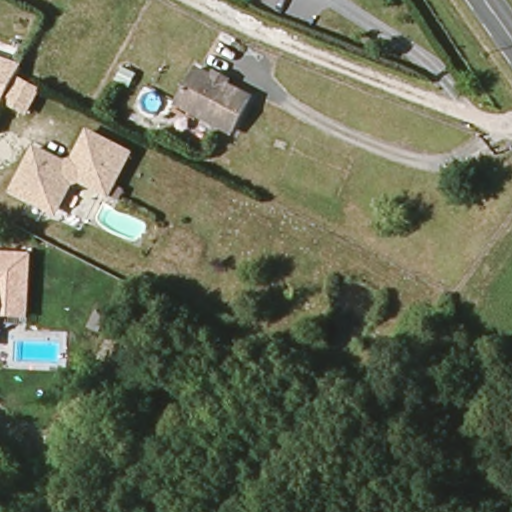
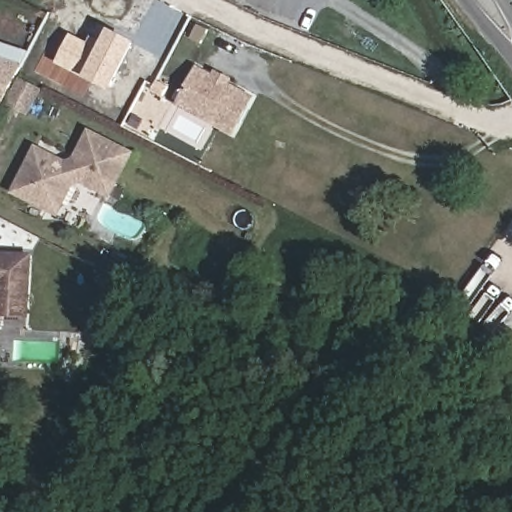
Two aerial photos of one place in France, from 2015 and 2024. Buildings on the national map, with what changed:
new [(88,42),(92,35),(102,40),(109,27),(138,42),(111,91),(85,77),(57,64),(71,33),(88,42)]
unchanged [(18,76),(42,88),(29,117),(6,105),(3,109),(0,108),(0,57),(22,63),(18,76)]
unchanged [(231,132),(177,105),(192,75),(195,69),(249,96),(247,101),(231,132)]
unchanged [(126,153),(105,195),(77,180),(67,183),(57,204),(42,208),(9,192),(31,148),(61,164),(70,161),(84,132),(126,153)]
unchanged [(30,317),(0,317),(0,250),(33,252),(30,317)]

